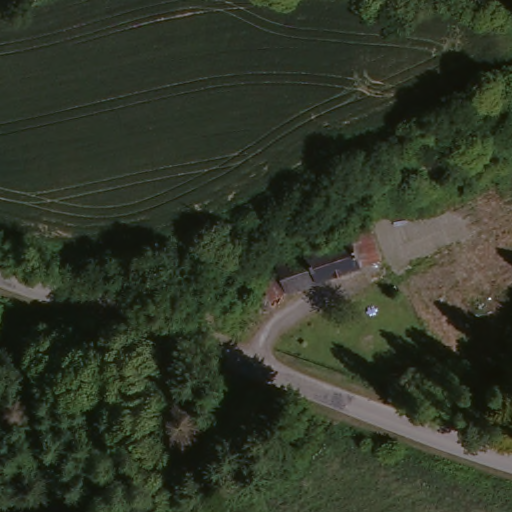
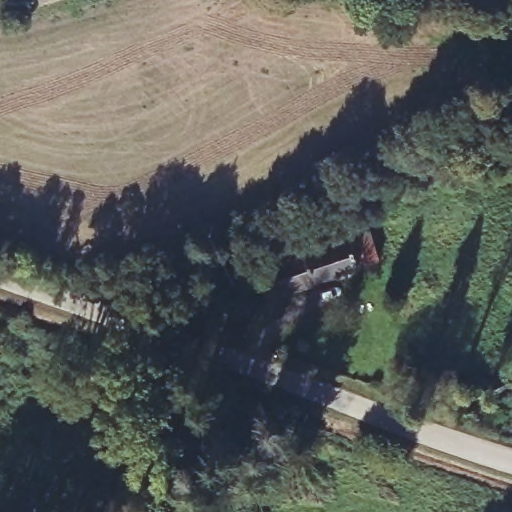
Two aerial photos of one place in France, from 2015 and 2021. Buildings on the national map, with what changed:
unchanged [(444,151),(451,172),(421,181),(416,160),(444,151)]
unchanged [(297,234),(302,252),(281,258),(275,240),(297,234)]
unchanged [(314,290),(264,304),(258,281),(274,275),(273,268),(347,244),(366,237),(374,266),(357,272),(314,285),(314,290)]

